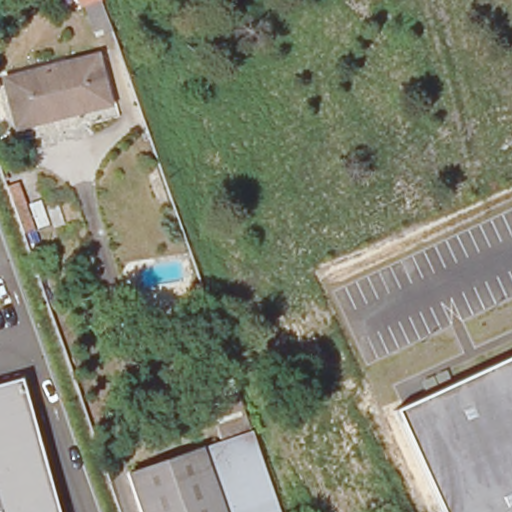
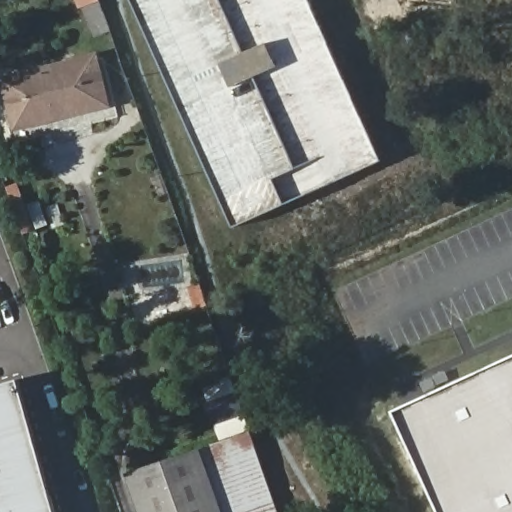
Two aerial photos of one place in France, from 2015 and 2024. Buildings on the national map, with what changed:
new [(308,194),(234,229),(132,0),(310,0),(382,160),(332,184),(308,194)]
unchanged [(95,66),(104,114),(13,133),(5,85),(95,66)]
unchanged [(395,410),(512,357),(512,512),(442,512),(395,410)]
unchanged [(19,378),(56,512),(0,512),(0,384),(19,378)]
unchanged [(244,428),(210,439),(204,420),(237,408),(244,428)]
unchanged [(128,472),(246,433),(274,512),(142,512),(128,472)]

